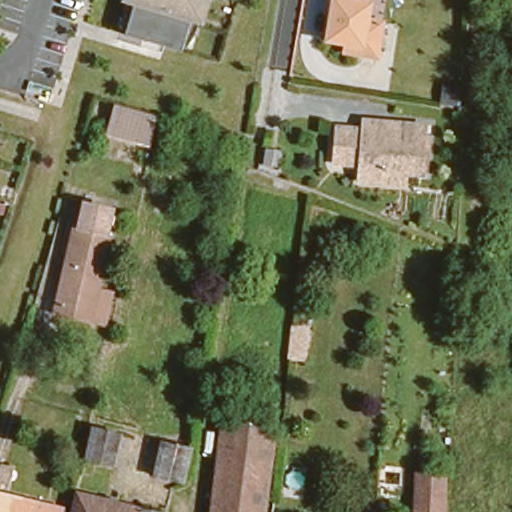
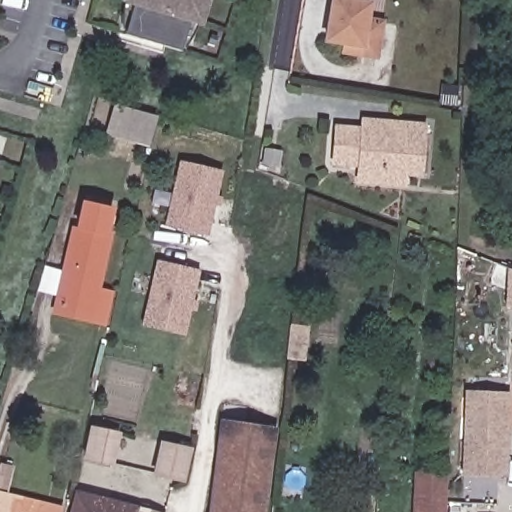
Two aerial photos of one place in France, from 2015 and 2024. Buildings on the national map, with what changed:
unchanged [(190,3),(185,20),(181,19),(172,50),(115,33),(125,2),(121,1),(122,0),(199,0),(197,5),(190,3)]
unchanged [(320,41),(327,0),(357,0),(357,2),(361,3),(357,18),(376,22),(369,59),(353,56),(339,54),(340,45),(320,41)]
unchanged [(109,99),(158,114),(149,149),(101,135),(109,99)]
unchanged [(352,163),(327,160),(330,128),(350,129),(351,117),(378,120),(414,124),(409,168),(396,167),(395,182),(373,180),(351,177),(352,163)]
new [(208,236),(163,225),(179,159),(222,169),(216,194),(221,195),(219,207),(214,206),(208,236)]
unchanged [(75,197),(112,205),(103,234),(69,221),(75,197)]
unchanged [(51,315),(62,272),(73,229),(110,239),(91,316),(90,324),(51,315)]
new [(198,301),(195,312),(190,310),(184,336),(140,326),(156,259),(200,269),(193,299),(198,301)]
new [(507,476),(461,475),(463,389),(510,390),(507,476)]
unchanged [(441,414),(441,406),(448,407),(448,414),(441,414)]
unchanged [(211,508),(222,415),(274,422),(262,512),(210,512),(211,508)]
unchanged [(96,462),(92,478),(80,475),(92,427),(118,433),(110,465),(96,462)]
unchanged [(182,480),(155,474),(162,444),(190,449),(182,480)]
unchanged [(7,497),(8,495),(60,509),(60,512),(0,512),(0,457),(4,459),(12,461),(9,471),(3,496),(7,497)]
unchanged [(416,471),(444,472),(443,512),(414,512),(416,471)]
unchanged [(76,490),(141,505),(142,499),(149,500),(147,506),(164,510),(164,512),(71,512),(76,490)]

